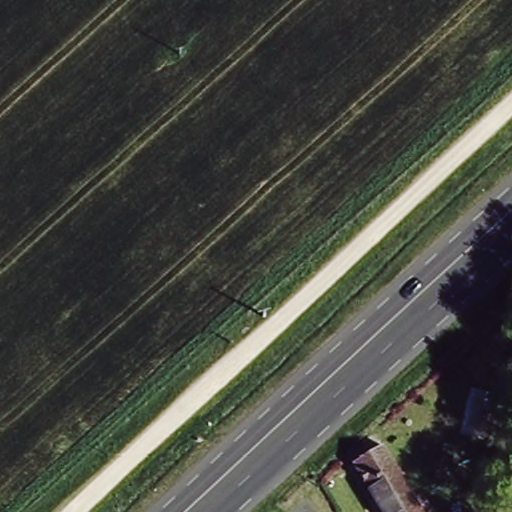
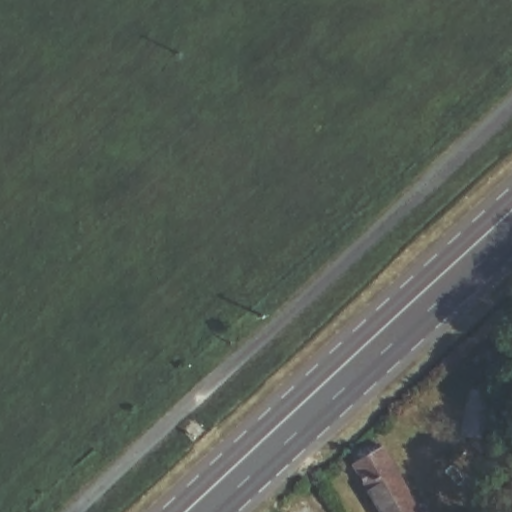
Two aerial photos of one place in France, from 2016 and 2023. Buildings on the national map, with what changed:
unchanged [(357,468),(384,450),(424,512),(385,512),(357,468)]

